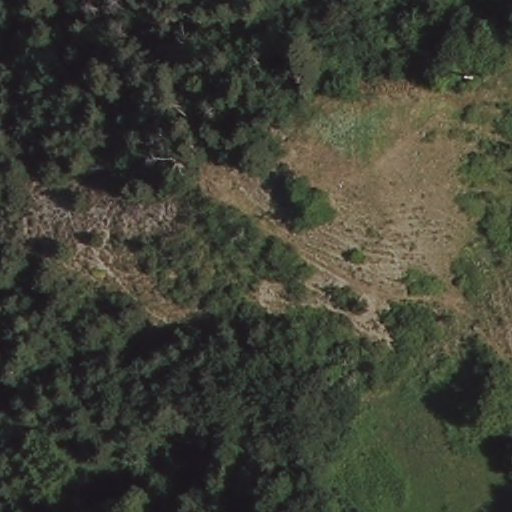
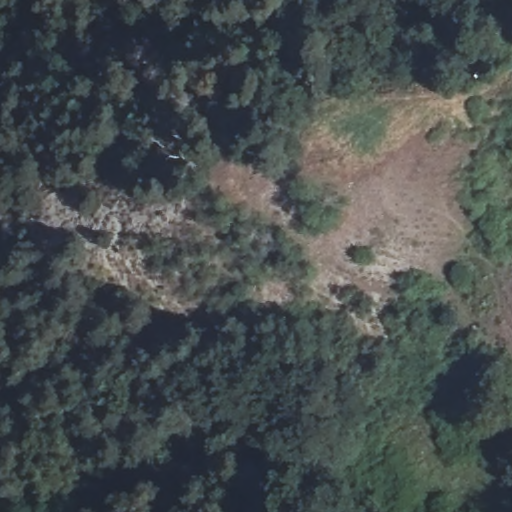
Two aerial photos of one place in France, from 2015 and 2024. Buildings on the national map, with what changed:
[]

